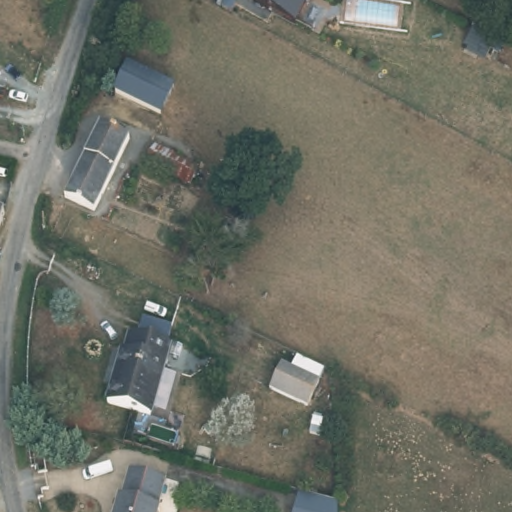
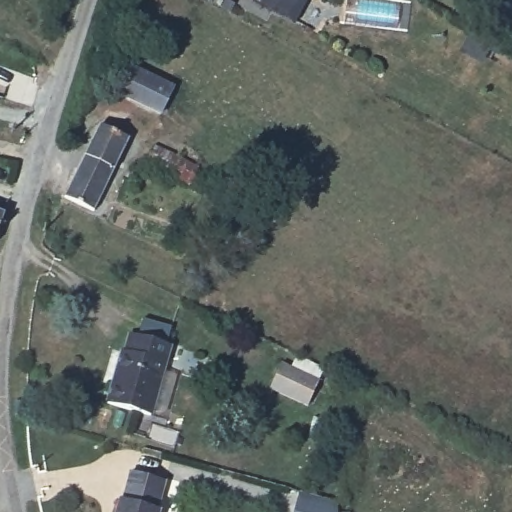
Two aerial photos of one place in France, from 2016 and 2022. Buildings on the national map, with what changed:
unchanged [(297,25),(253,4),(255,0),(308,0),(297,25)]
unchanged [(175,81),(162,109),(119,88),(131,61),(175,81)]
unchanged [(94,209),(65,195),(100,123),(129,138),(94,209)]
unchanged [(209,179),(202,194),(146,164),(154,150),(209,179)]
unchanged [(162,377),(164,378),(154,414),(109,401),(123,348),(128,349),(133,330),(172,342),(162,377)]
unchanged [(267,385),(277,361),(316,379),(306,403),(267,385)]
unchanged [(164,512),(114,512),(117,501),(122,500),(129,472),(170,483),(163,508),(164,512)]
unchanged [(335,504),(335,512),(292,512),(296,496),(335,504)]

